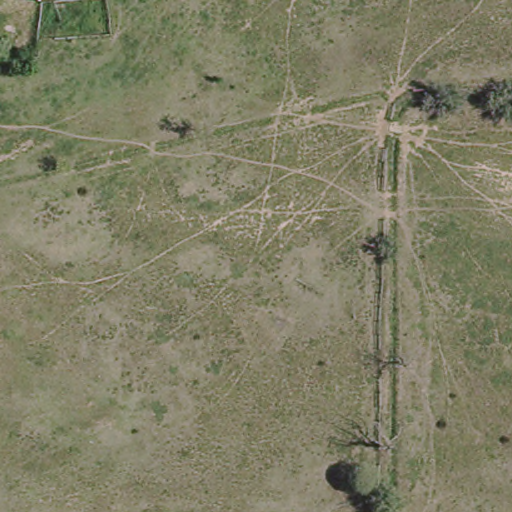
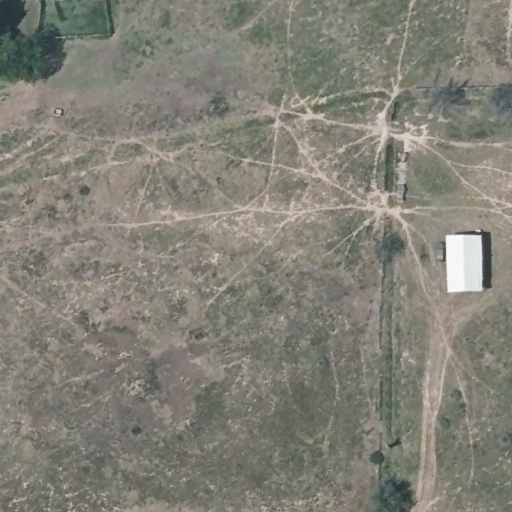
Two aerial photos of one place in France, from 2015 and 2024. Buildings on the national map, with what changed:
new [(483,235),(484,291),(448,292),(446,235),(483,235)]

